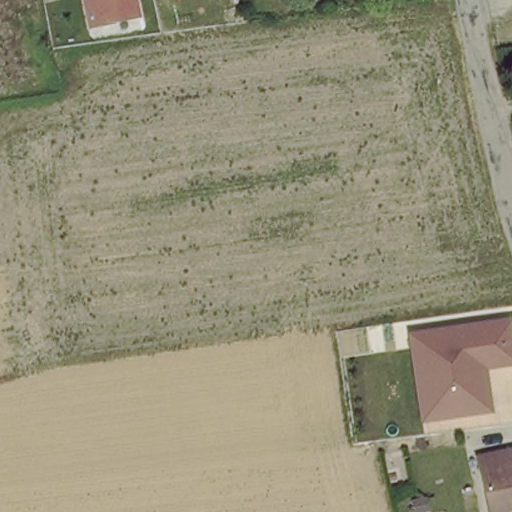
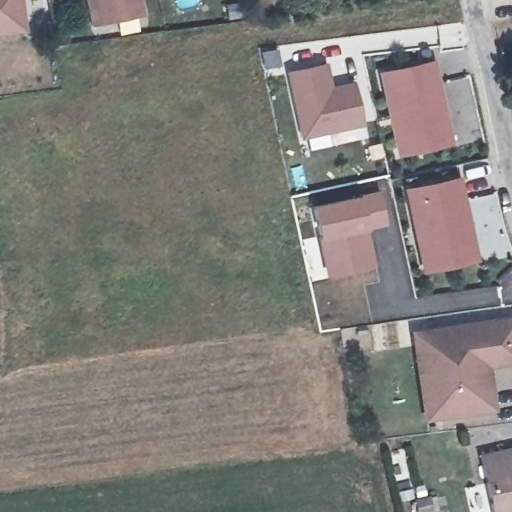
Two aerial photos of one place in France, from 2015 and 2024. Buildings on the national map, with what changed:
new [(23,0),(27,31),(0,35),(0,0),(23,0)]
unchanged [(87,27),(82,0),(143,0),(148,17),(87,27)]
new [(440,53),(458,144),(400,154),(381,64),(440,53)]
new [(327,62),(332,86),(354,81),(365,128),(300,141),(285,71),(327,62)]
new [(465,171),(481,253),(426,263),(408,182),(465,171)]
new [(300,239),(315,235),(306,193),(348,183),(349,189),(340,191),(341,196),(380,189),(387,227),(370,230),(377,268),(325,279),(309,282),(300,239)]
unchanged [(492,372),(500,411),(425,422),(410,332),(512,316),(512,368),(492,372)]
unchanged [(490,511),(483,454),(512,451),(512,508),(505,509),(505,512),(490,512),(490,511)]

